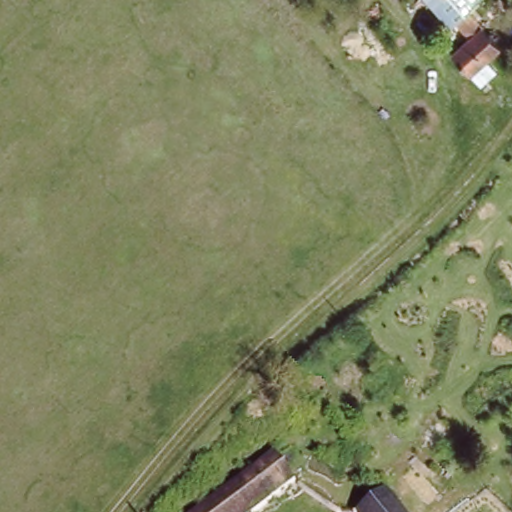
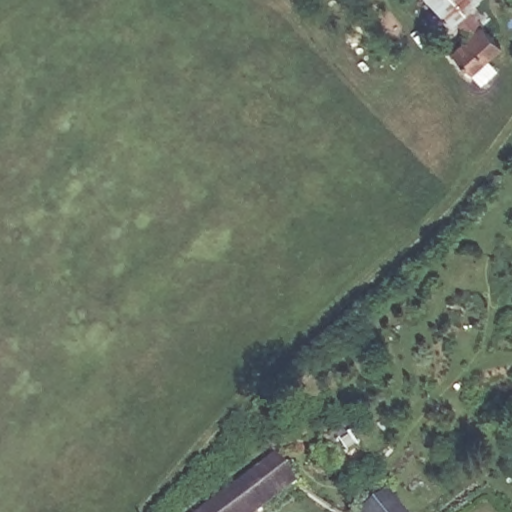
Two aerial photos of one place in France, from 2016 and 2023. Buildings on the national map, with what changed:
unchanged [(487,15),(508,42),(494,54),(504,67),(485,82),(460,50),(478,35),(462,14),(454,18),(434,0),(487,0),(494,9),(487,15)]
unchanged [(295,486),(258,512),(199,512),(274,458),(295,486)]
unchanged [(395,499),(404,512),(377,512),(395,499)]

